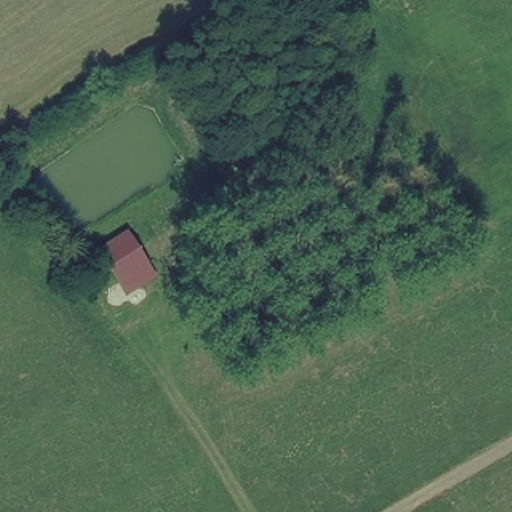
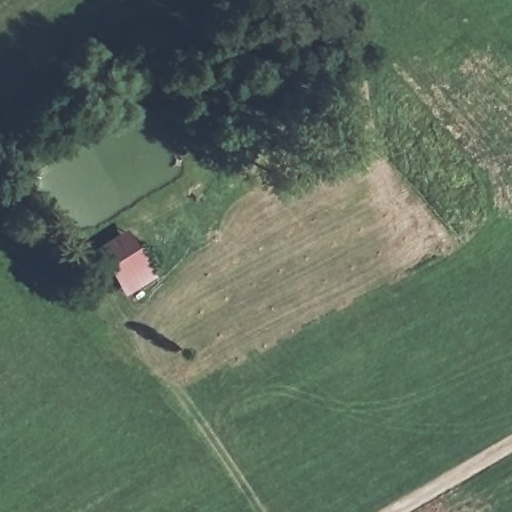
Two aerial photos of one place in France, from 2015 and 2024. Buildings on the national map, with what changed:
unchanged [(133,298),(109,249),(138,233),(165,277),(133,298)]

